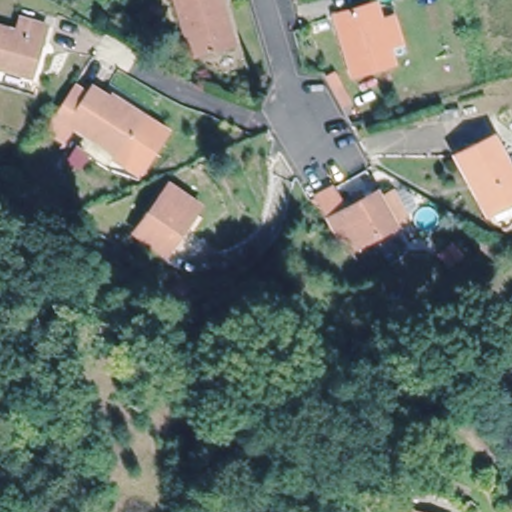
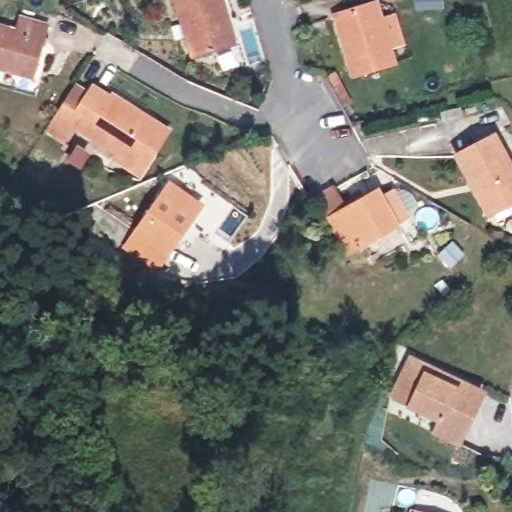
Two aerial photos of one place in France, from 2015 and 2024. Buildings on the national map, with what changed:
unchanged [(190,57),(173,0),(220,0),(232,45),(190,57)]
unchanged [(394,15),(403,44),(388,48),(393,62),(353,75),(336,15),(375,4),(380,19),(394,15)]
unchanged [(0,67),(0,28),(16,32),(20,17),(47,25),(32,76),(0,67)]
unchanged [(45,135),(55,119),(74,90),(87,98),(90,94),(109,106),(112,101),(144,122),(120,160),(76,131),(65,148),(45,135)]
unchanged [(463,115),(443,120),(441,112),(461,107),(463,115)]
unchanged [(165,135),(137,179),(117,165),(120,160),(144,122),(165,135)]
unchanged [(468,180),(456,155),(493,136),(512,171),(512,203),(492,214),(487,215),(468,180)]
unchanged [(167,254),(136,232),(163,194),(169,185),(201,206),(194,215),(185,229),(177,240),(167,254)]
unchanged [(318,197),(335,188),(347,209),(356,204),(354,200),(362,195),(364,199),(377,192),(380,197),(392,190),(408,218),(395,225),(349,251),(331,218),(318,197)]
unchanged [(451,267),(441,255),(455,245),(465,256),(451,267)]
new [(430,433),(434,420),(405,406),(389,398),(407,355),(425,362),(423,371),(458,388),(462,380),(484,393),(457,447),(430,433)]

